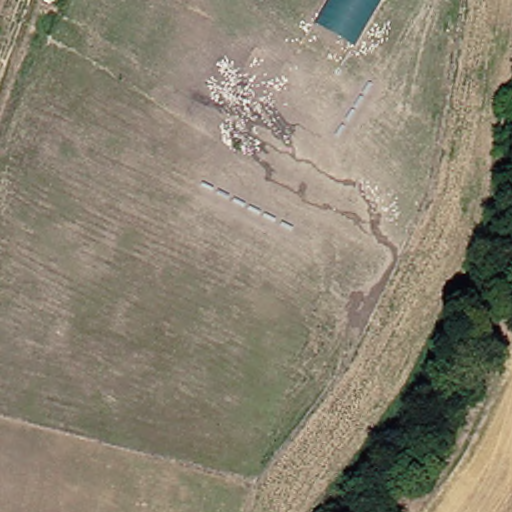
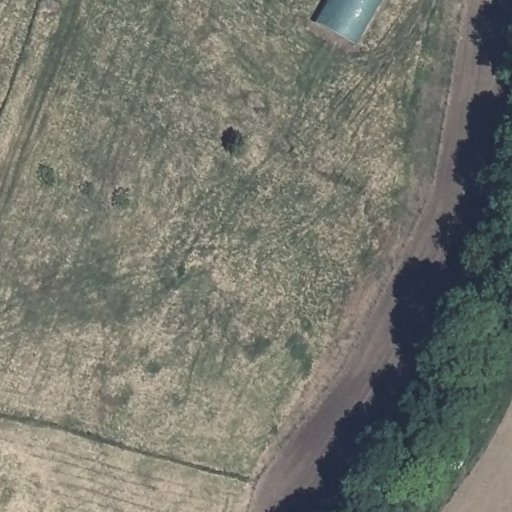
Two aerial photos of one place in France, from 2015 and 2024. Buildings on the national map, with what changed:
unchanged [(327,0),(380,0),(355,44),(314,22),(327,0)]

